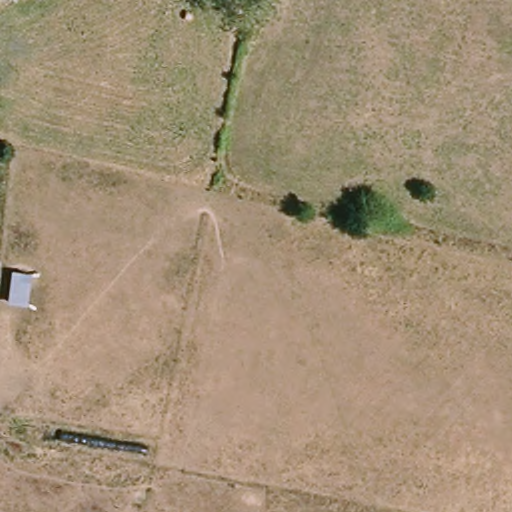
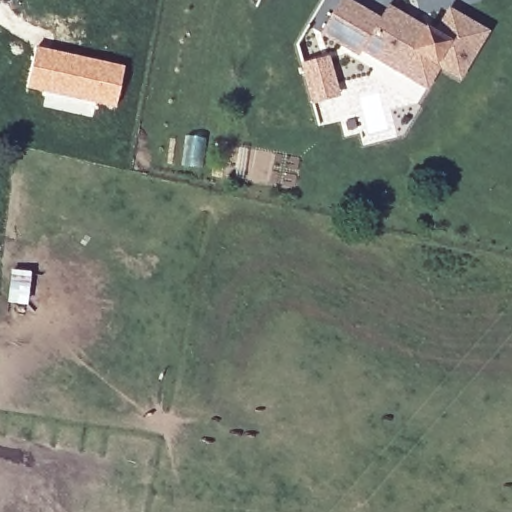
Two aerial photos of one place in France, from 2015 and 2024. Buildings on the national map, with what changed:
new [(361,50),(358,55),(319,32),(339,0),(345,0),(378,20),(382,12),(385,6),(424,29),(433,35),(447,9),(484,31),(458,77),(439,66),(425,87),(410,79),(361,50)]
new [(26,88),(36,46),(124,66),(115,109),(95,104),(92,117),(43,105),(45,94),(26,88)]
new [(302,62),(330,55),(341,97),(313,104),(302,62)]
unchanged [(5,302),(9,268),(30,272),(26,305),(5,302)]

